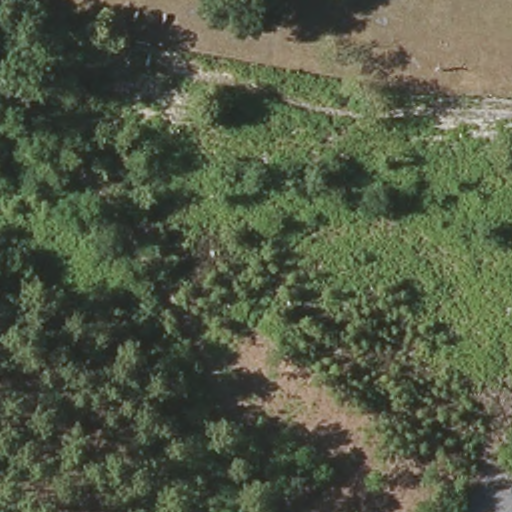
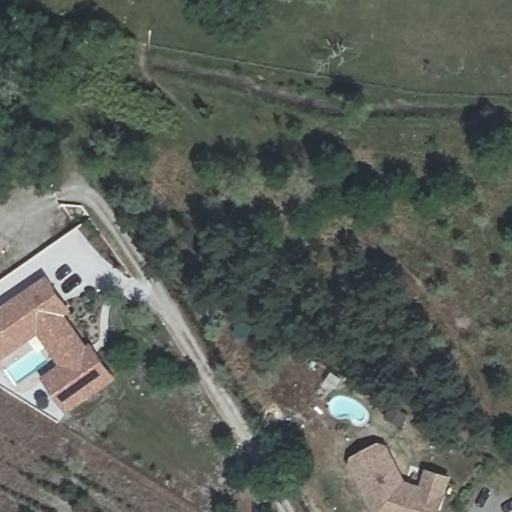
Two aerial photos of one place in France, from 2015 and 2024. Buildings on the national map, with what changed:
new [(0,245),(3,249),(0,252),(0,245)]
new [(68,414),(43,377),(62,365),(41,334),(4,360),(0,354),(0,308),(49,275),(74,311),(68,315),(90,345),(94,342),(119,378),(68,414)]
new [(455,475),(444,512),(376,512),(350,458),(382,441),(390,443),(408,480),(422,484),(427,468),(455,475)]

